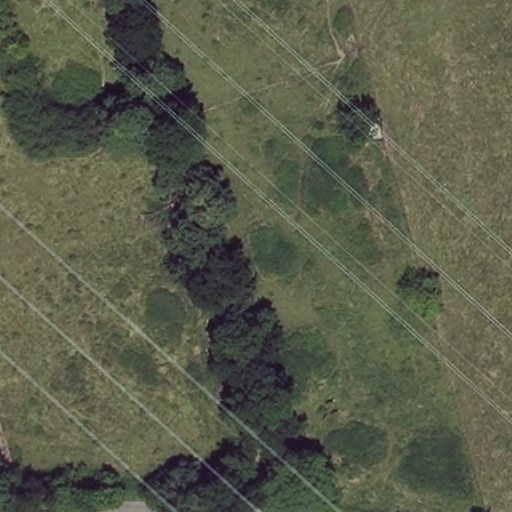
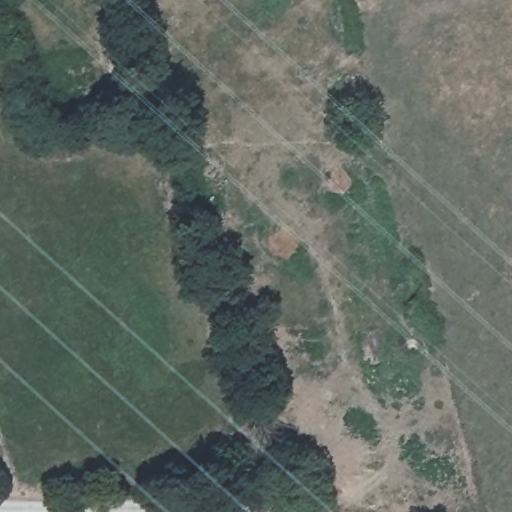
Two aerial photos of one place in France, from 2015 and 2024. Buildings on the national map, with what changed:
unchanged [(367,126),(363,108),(376,104),(381,121),(367,126)]

